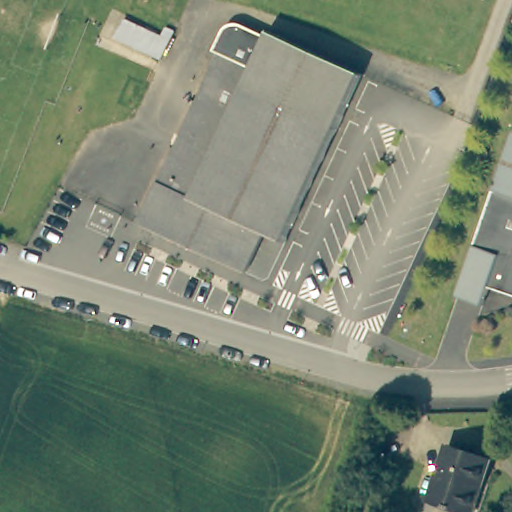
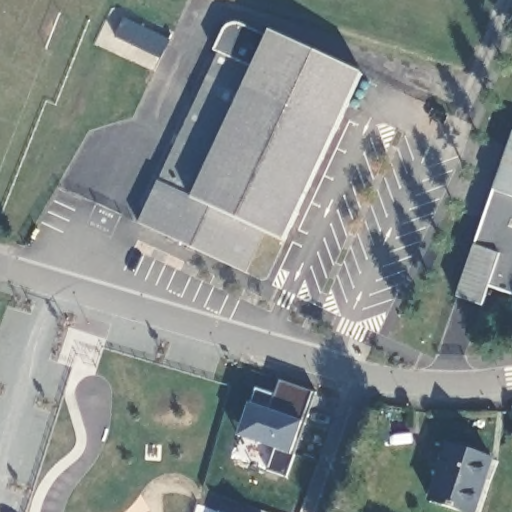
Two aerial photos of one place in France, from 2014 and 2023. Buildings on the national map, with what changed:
unchanged [(206,55),(216,29),(219,25),(223,22),(228,21),(232,21),(260,35),(263,29),(359,70),(289,240),(267,230),(249,272),(139,229),(212,56),(206,55)]
unchanged [(165,40),(158,57),(143,52),(144,46),(135,42),(133,48),(113,40),(120,22),(165,40)]
unchanged [(507,130),(512,131),(512,289),(489,282),(484,301),(458,293),(507,130)]
new [(254,385),(274,392),(279,377),(315,390),(287,475),(267,467),(274,445),(238,433),(254,385)]
unchanged [(449,444),(492,460),(487,478),(477,512),(465,512),(431,500),(449,444)]
new [(223,512),(220,512),(220,511),(223,512)]

